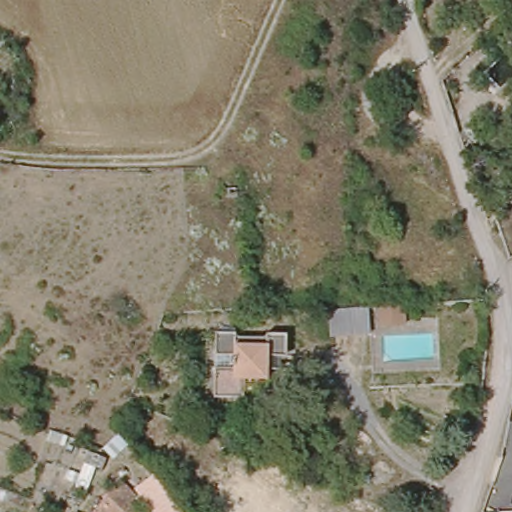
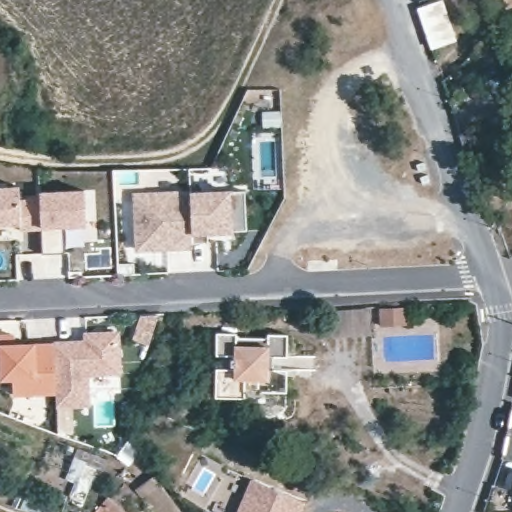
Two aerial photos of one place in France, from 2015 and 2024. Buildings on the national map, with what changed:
new [(279,126),(263,126),(262,111),(279,111),(279,126)]
new [(19,223),(0,224),(0,185),(18,184),(18,199),(39,198),(40,228),(19,229),(19,223)]
new [(61,226),(63,252),(43,253),(41,227),(39,192),(83,189),(85,225),(61,226)]
new [(243,189),(246,229),(206,231),(207,242),(191,242),(188,192),(243,189)]
new [(188,192),(191,242),(191,246),(136,248),(134,193),(188,192)]
unchanged [(406,324),(380,325),(379,308),(405,307),(406,324)]
new [(85,341),(85,333),(117,332),(119,374),(87,376),(88,407),(56,409),(55,392),(53,343),(85,341)]
unchanged [(281,399),(241,398),(209,397),(210,368),(229,368),(229,357),(210,356),(211,332),(231,333),(231,337),(262,337),(262,333),(283,334),(282,357),(264,357),(263,372),(282,373),(281,399)]
new [(13,395),(13,378),(3,379),(1,353),(0,353),(0,335),(13,335),(14,344),(33,343),(33,344),(53,343),(55,392),(13,395)]
unchanged [(135,492),(151,476),(178,504),(169,512),(94,512),(120,484),(135,492)]
new [(301,512),(237,512),(249,481),(305,502),(301,512)]
demolished [(298,505),(293,512),(259,512),(277,490),(298,505)]

